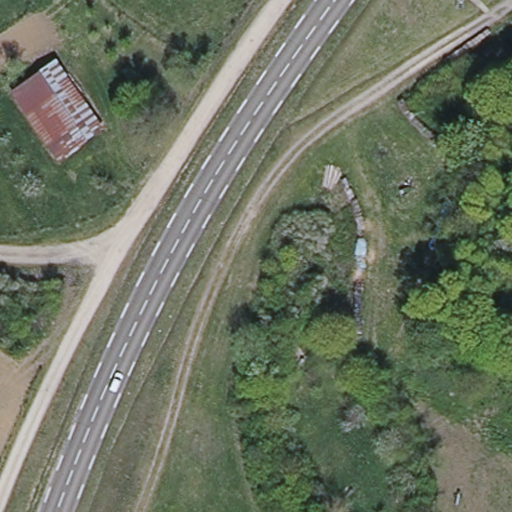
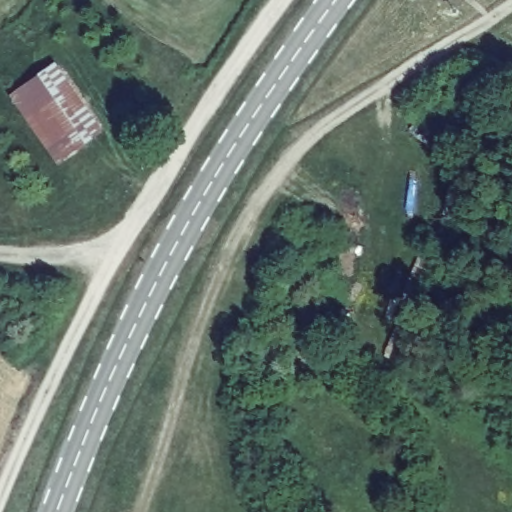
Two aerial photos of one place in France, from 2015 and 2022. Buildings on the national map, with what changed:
unchanged [(52,64),(100,132),(59,160),(11,95),(52,64)]

